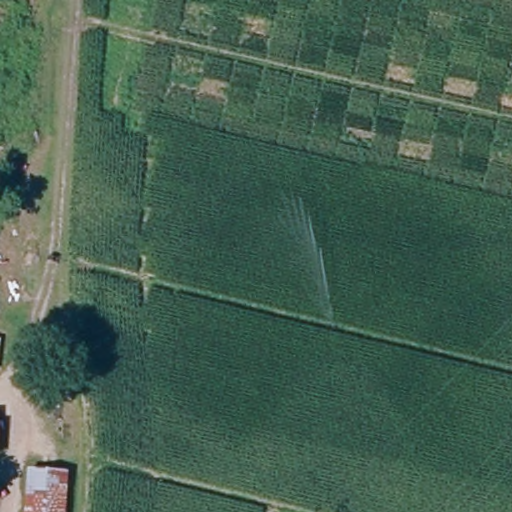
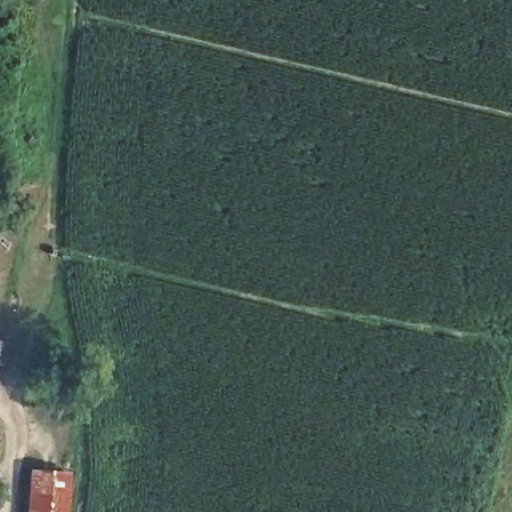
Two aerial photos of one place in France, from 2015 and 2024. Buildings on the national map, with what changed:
unchanged [(71,482),(67,512),(28,512),(31,477),(71,482)]

